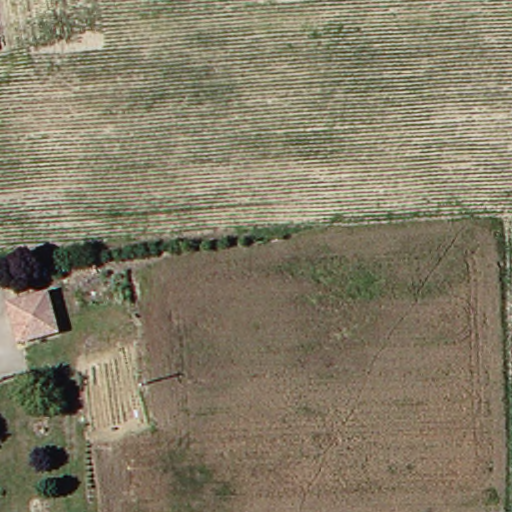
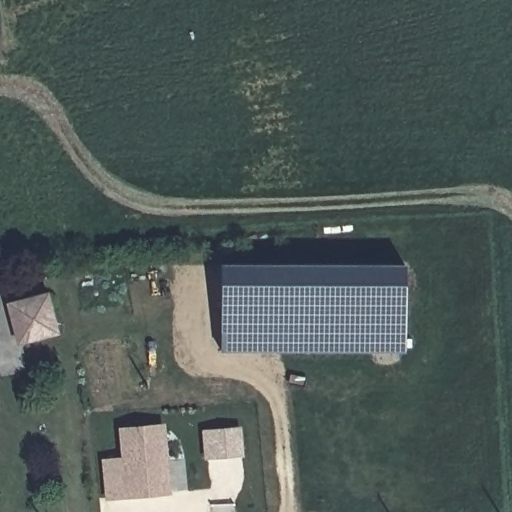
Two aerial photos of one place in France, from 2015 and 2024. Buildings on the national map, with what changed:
new [(404,262),(403,351),(222,350),(222,262),(404,262)]
unchanged [(11,301),(51,293),(58,333),(19,340),(11,301)]
new [(118,427),(166,423),(171,493),(105,499),(101,459),(120,457),(118,427)]
new [(244,457),(204,460),(201,430),(241,426),(244,457)]

